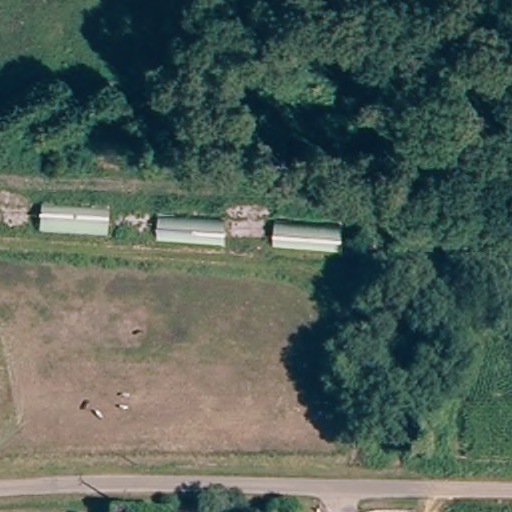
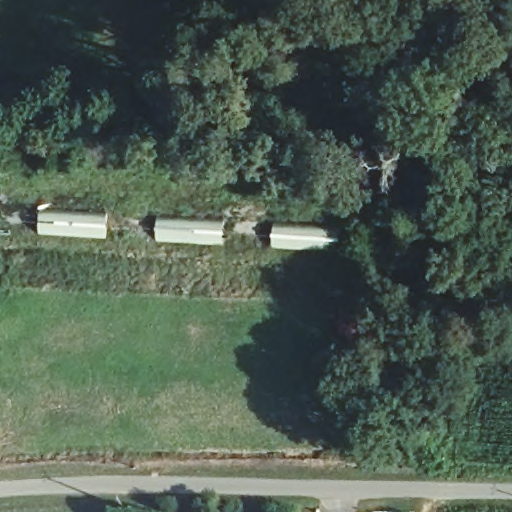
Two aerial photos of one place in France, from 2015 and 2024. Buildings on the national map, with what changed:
unchanged [(110,218),(109,243),(41,239),(43,214),(110,218)]
unchanged [(227,225),(225,250),(158,246),(160,221),(227,225)]
unchanged [(345,233),(343,258),(275,253),(277,228),(345,233)]

